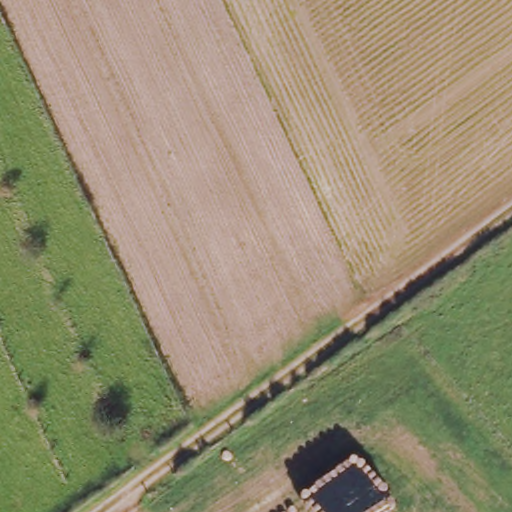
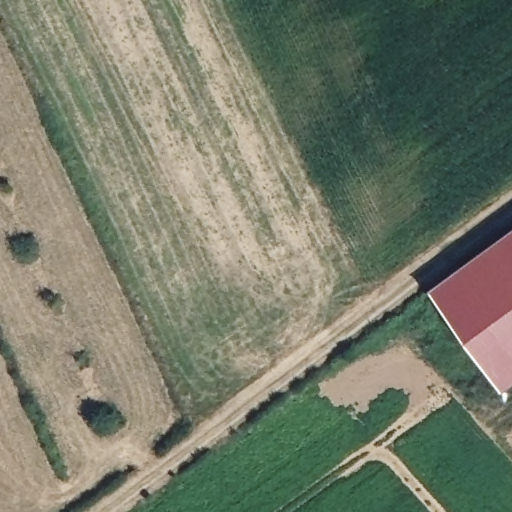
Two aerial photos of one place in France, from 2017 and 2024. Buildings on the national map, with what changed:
new [(503,390),(472,347),(475,345),(470,337),(467,340),(430,290),(512,231),(512,384),(503,390)]

